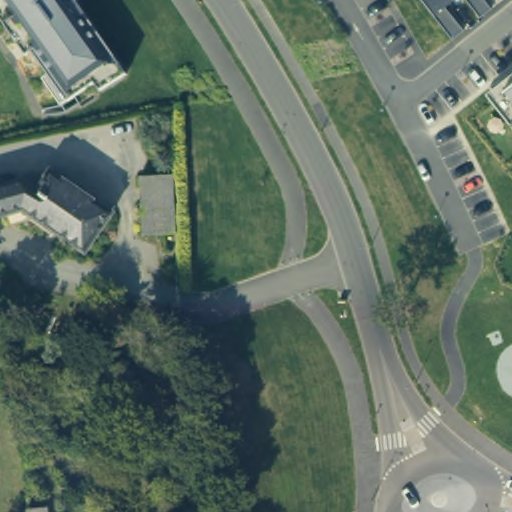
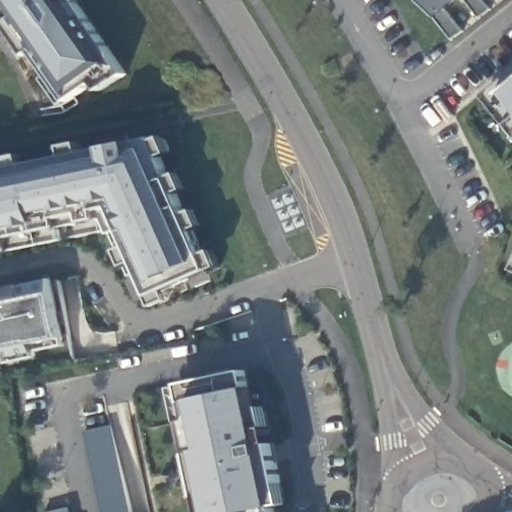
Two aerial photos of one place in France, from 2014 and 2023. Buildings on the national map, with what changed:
unchanged [(67,92),(24,31),(18,35),(0,9),(0,0),(81,0),(120,55),(125,63),(100,81),(94,73),(67,92)]
unchanged [(443,6),(462,30),(451,39),(420,0),(452,0),(443,6)]
unchanged [(489,8),(479,17),(465,0),(483,0),(489,8)]
unchanged [(512,75),(512,130),(484,96),(512,75)]
new [(153,137),(210,267),(166,287),(171,298),(155,307),(121,231),(112,234),(105,218),(101,218),(83,221),(61,226),(63,240),(0,253),(0,169),(153,137)]
demolished [(110,212),(84,250),(21,208),(0,226),(0,193),(13,182),(20,171),(30,171),(41,179),(47,170),(110,212)]
demolished [(139,182),(149,182),(168,180),(172,237),(144,239),(139,182)]
new [(52,279),(53,291),(63,336),(35,341),(39,353),(6,359),(4,350),(0,351),(0,290),(52,279)]
new [(173,386),(181,385),(247,370),(252,388),(258,387),(284,503),(277,505),(279,512),(202,512),(183,421),(173,386)]
new [(131,512),(104,512),(84,431),(110,426),(131,512)]
demolished [(45,504),(47,512),(28,512),(27,507),(45,504)]
new [(75,512),(50,512),(73,507),(75,512)]

